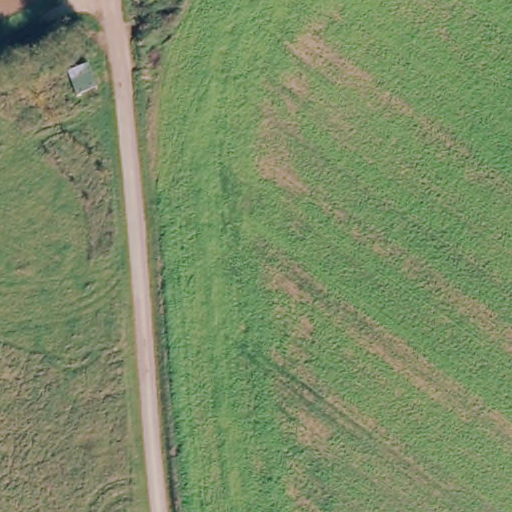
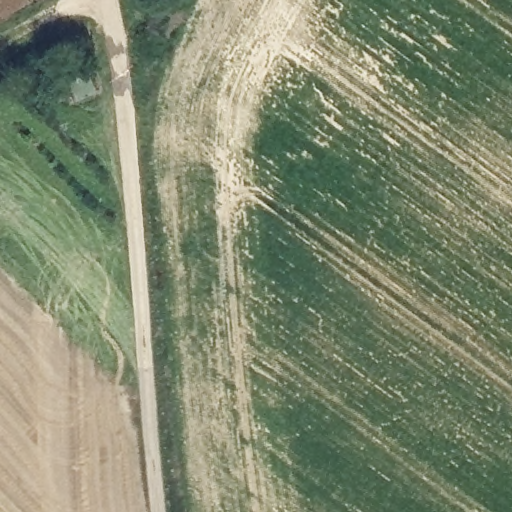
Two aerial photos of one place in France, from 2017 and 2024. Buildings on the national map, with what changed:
unchanged [(90,94),(70,100),(62,76),(82,70),(90,94)]

